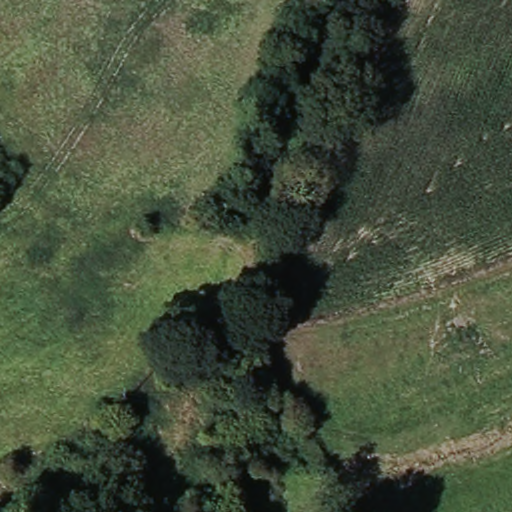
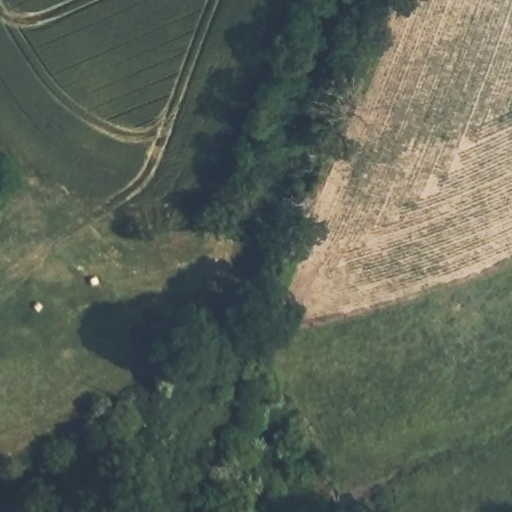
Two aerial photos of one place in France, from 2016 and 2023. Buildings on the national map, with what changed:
[]

